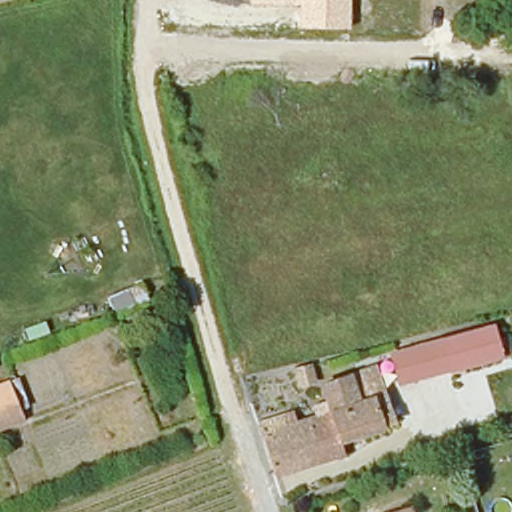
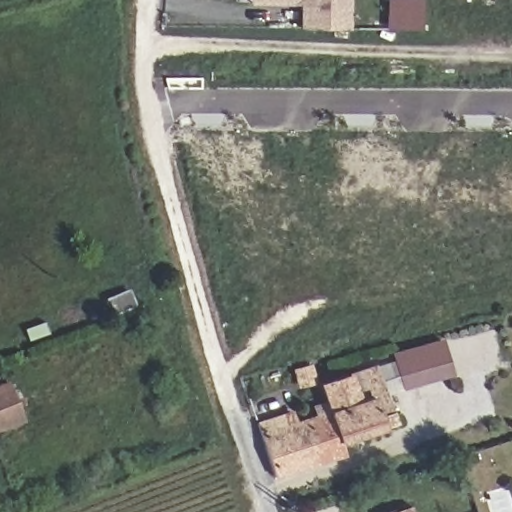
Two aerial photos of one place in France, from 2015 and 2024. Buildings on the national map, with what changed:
unchanged [(300,26),(300,5),(249,4),(249,0),(352,0),(351,27),(300,26)]
new [(395,30),(383,30),(383,0),(416,0),(416,31),(395,30)]
unchanged [(150,301),(116,317),(107,298),(141,281),(150,301)]
unchanged [(504,361),(398,385),(396,376),(385,391),(361,397),(352,372),(391,359),(389,350),(496,324),(504,361)]
unchanged [(333,400),(328,382),(340,378),(352,372),(361,397),(385,391),(393,418),(358,433),(340,441),(341,455),(274,480),(257,429),(256,422),(292,412),(293,415),(296,422),(336,409),(333,400)]
unchanged [(0,387),(5,384),(20,420),(0,428),(0,387)]
unchanged [(411,507),(412,512),(393,512),(411,507)]

